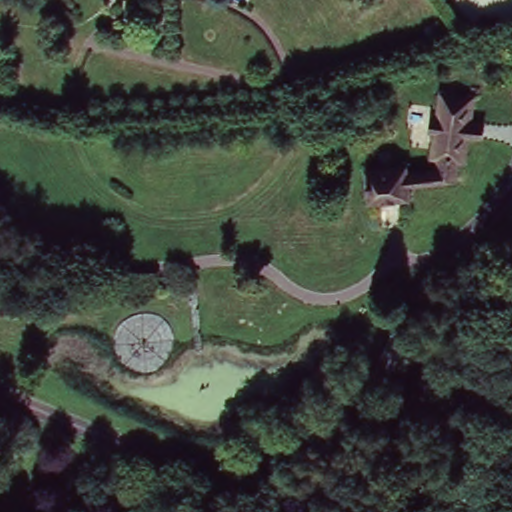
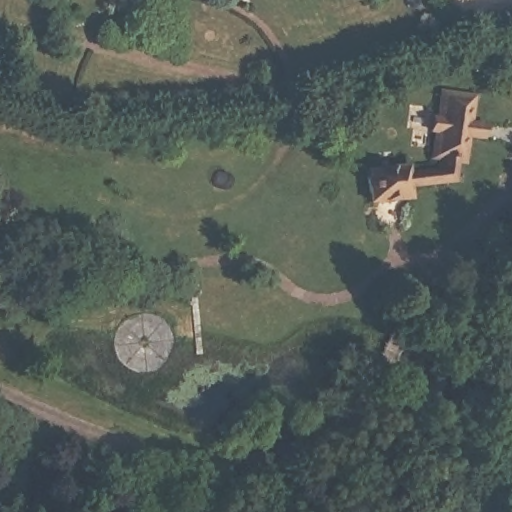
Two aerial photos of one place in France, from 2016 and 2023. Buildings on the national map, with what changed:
unchanged [(470,123),(485,125),(483,139),(469,137),(465,164),(457,161),(455,180),(408,187),(408,199),(368,202),(365,167),(405,165),(406,172),(442,168),(442,158),(431,156),(436,127),(428,125),(431,113),(439,115),(442,91),(474,97),(470,123)]

